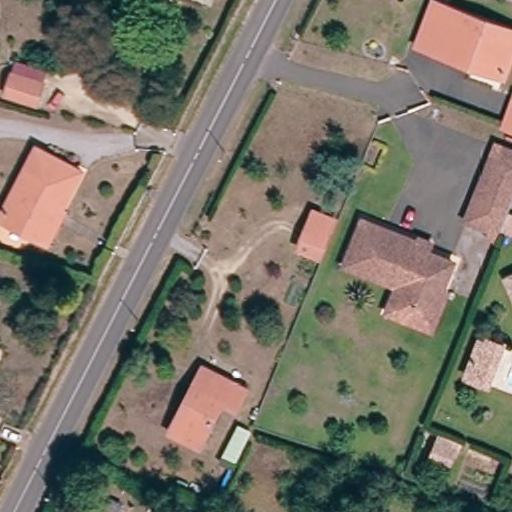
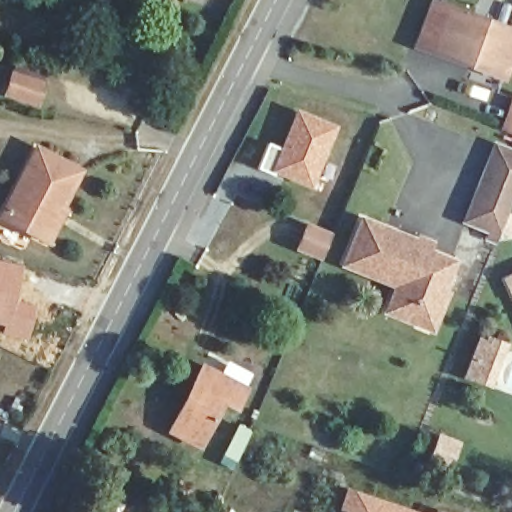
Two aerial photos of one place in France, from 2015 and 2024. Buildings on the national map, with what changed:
unchanged [(477,70),(475,74),(434,59),(436,55),(419,49),(434,9),(512,38),(512,61),(504,81),(477,70)]
unchanged [(0,80),(3,70),(34,80),(27,101),(0,92),(0,80)]
unchanged [(499,132),(512,97),(512,137),(499,132)]
new [(266,141),(279,147),(295,108),(338,126),(325,159),(309,190),(254,169),(266,141)]
unchanged [(495,236),(463,222),(492,150),(512,157),(512,194),(495,236)]
unchanged [(63,215),(59,214),(43,245),(3,224),(39,155),(82,177),(63,215)]
unchanged [(346,220),(326,267),(297,255),(318,208),(346,220)]
unchanged [(349,264),(364,226),(417,249),(418,246),(430,251),(427,257),(453,268),(433,315),(419,308),(411,326),(388,316),(399,292),(346,270),(349,264)]
new [(15,298),(36,304),(27,342),(1,335),(3,327),(0,326),(0,261),(24,267),(15,298)]
unchanged [(512,300),(503,279),(512,276),(512,299),(512,300)]
unchanged [(486,343),(488,339),(503,345),(488,383),(466,375),(479,341),(486,343)]
unchanged [(224,407),(200,453),(170,437),(180,418),(186,421),(199,395),(194,392),(204,372),(247,395),(237,415),(224,407)]
new [(439,433),(459,442),(446,475),(424,466),(439,433)]
new [(417,512),(342,512),(338,511),(347,487),(417,512)]
new [(441,512),(438,512),(438,511),(441,512)]

